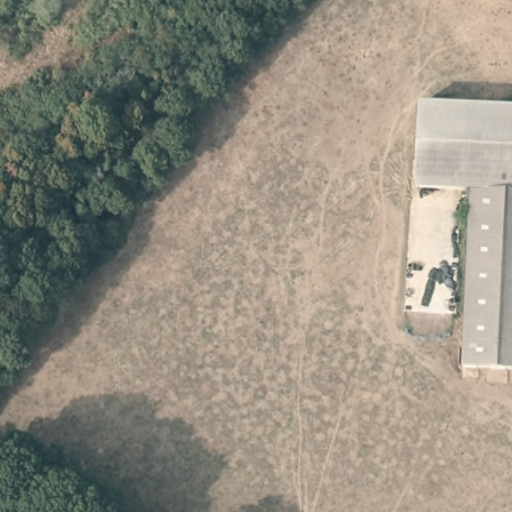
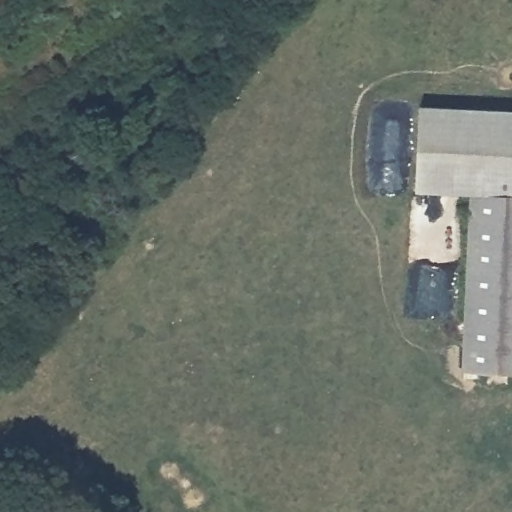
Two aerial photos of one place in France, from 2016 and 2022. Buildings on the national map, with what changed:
unchanged [(509,109),(505,187),(465,186),(409,185),(413,104),(509,109)]
unchanged [(505,187),(509,109),(512,109),(512,366),(455,364),(463,212),(465,186),(505,187)]

